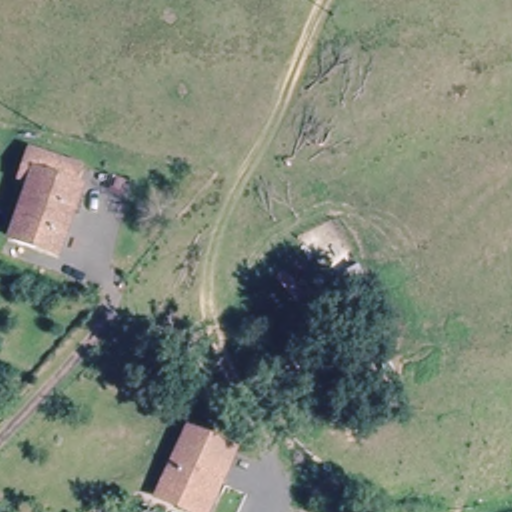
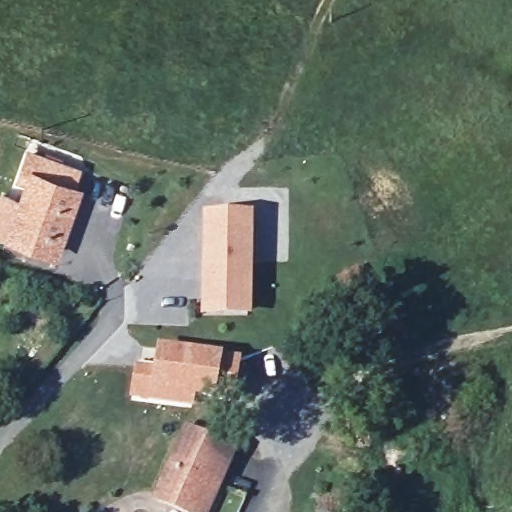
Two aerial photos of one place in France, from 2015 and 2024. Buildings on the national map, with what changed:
unchanged [(29,182),(21,179),(30,154),(77,170),(71,188),(77,190),(55,254),(10,238),(29,182)]
new [(252,318),(201,317),(202,214),(253,214),(252,318)]
unchanged [(357,269),(383,323),(362,333),(337,279),(357,269)]
new [(155,367),(159,344),(225,356),(241,360),(232,406),(196,399),(194,409),(130,398),(135,362),(155,367)]
unchanged [(189,511),(168,502),(157,497),(187,431),(187,430),(210,441),(219,444),(235,452),(221,484),(214,498),(208,512),(191,512),(189,511)]

